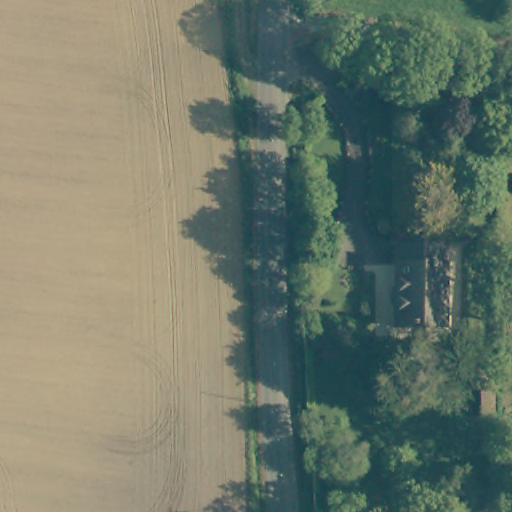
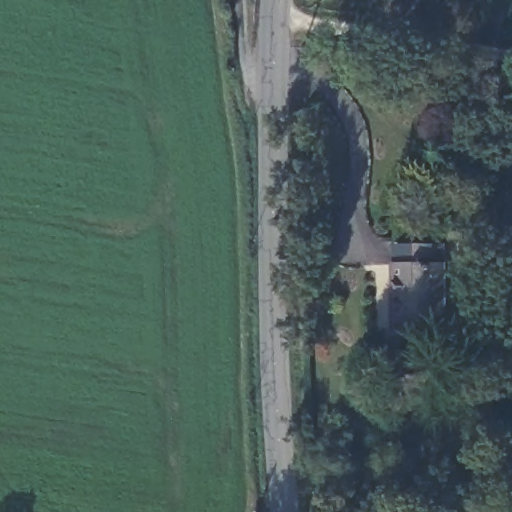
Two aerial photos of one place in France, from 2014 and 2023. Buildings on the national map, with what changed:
unchanged [(442,267),(447,267),(447,326),(392,326),(391,271),(398,271),(398,246),(441,246),(442,267)]

